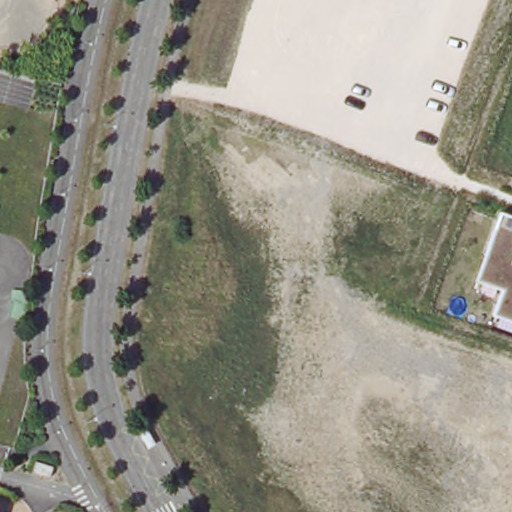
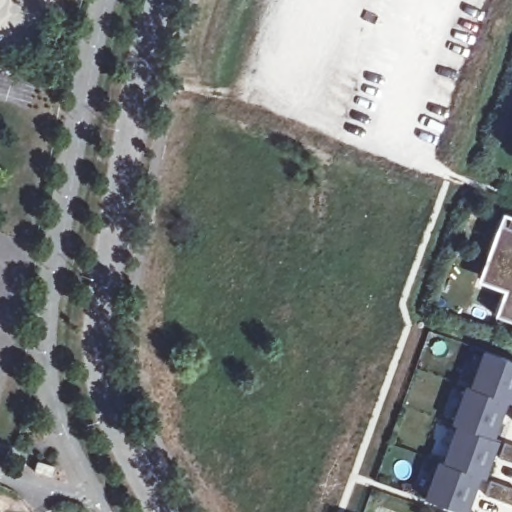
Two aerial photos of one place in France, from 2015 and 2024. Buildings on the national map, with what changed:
unchanged [(498,317),(507,292),(481,283),(503,218),(512,220),(512,321),(498,317)]
new [(507,400),(493,439),(498,442),(484,479),(479,477),(466,512),(465,512),(423,498),(437,460),(442,462),(455,427),(448,424),(463,385),(469,387),(483,350),(512,360),(512,401),(507,400)]
new [(499,458),(504,442),(512,445),(512,462),(499,458)]
unchanged [(57,468),(54,478),(37,472),(39,462),(57,468)]
new [(485,495),(490,480),(512,488),(512,505),(485,495)]

